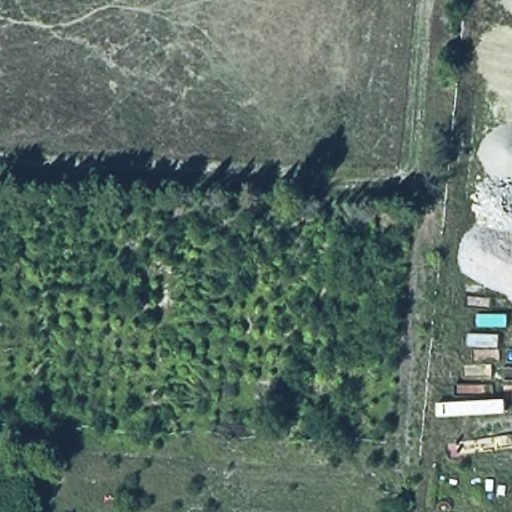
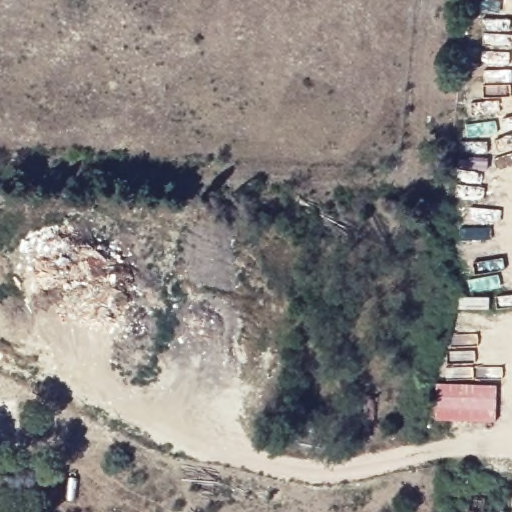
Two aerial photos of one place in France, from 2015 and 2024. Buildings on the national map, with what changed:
new [(434,382),(497,384),(495,422),(432,419),(434,382)]

